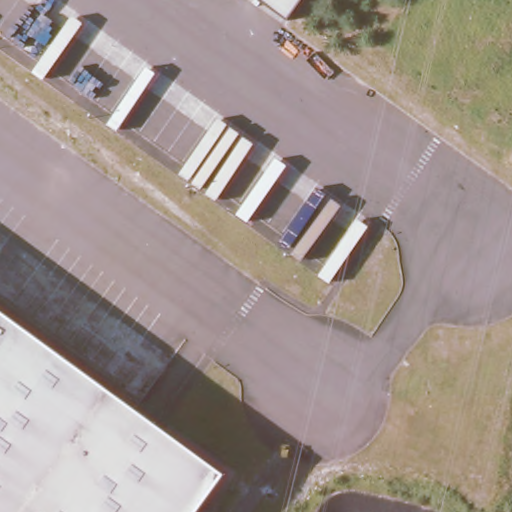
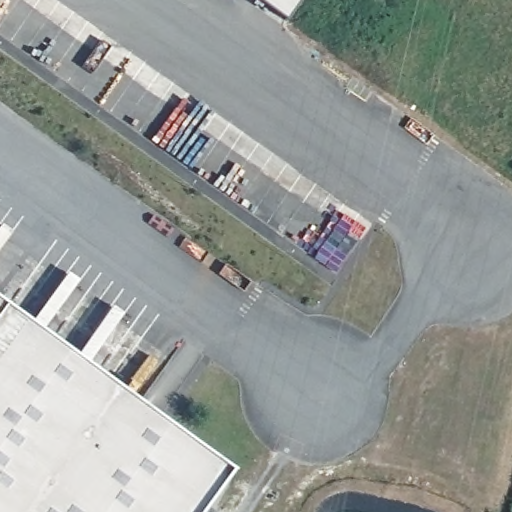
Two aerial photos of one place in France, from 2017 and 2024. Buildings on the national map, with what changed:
unchanged [(285,20),(255,0),(300,0),(285,20)]
unchanged [(197,512),(0,512),(0,311),(225,475),(197,512)]

